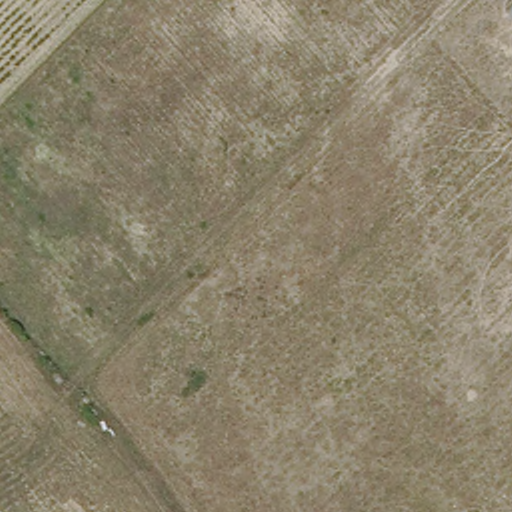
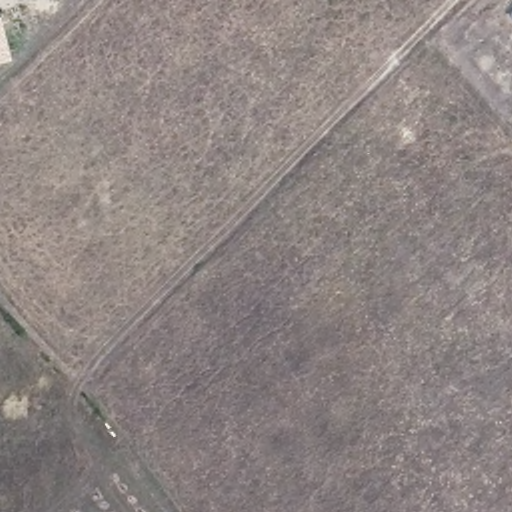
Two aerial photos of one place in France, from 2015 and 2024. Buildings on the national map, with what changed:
new [(0,62),(0,14),(12,59),(0,62)]

